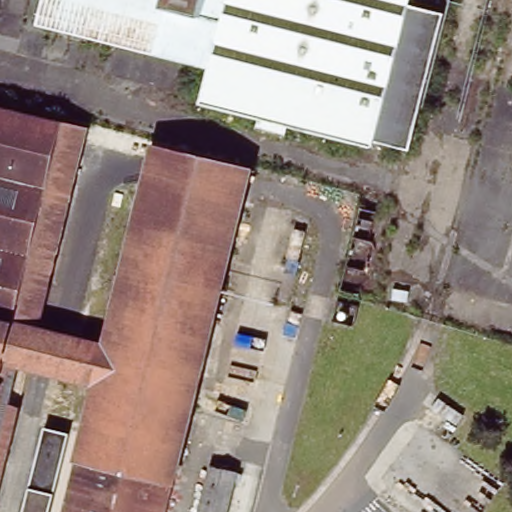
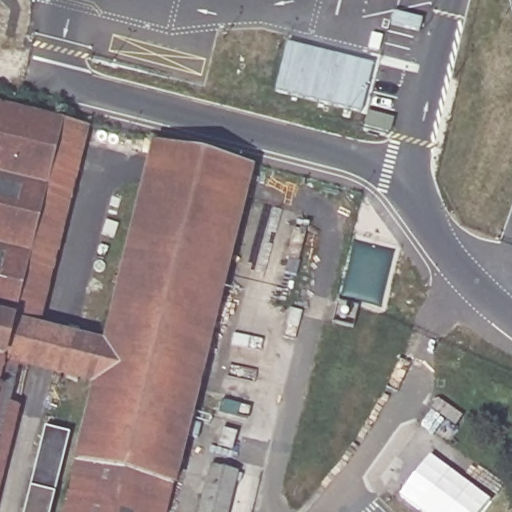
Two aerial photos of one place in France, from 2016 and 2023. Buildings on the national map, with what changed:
demolished [(202,16),(163,6),(165,0),(206,0),(202,16)]
demolished [(405,6),(423,11),(390,147),(374,144),(373,146),(310,131),(310,127),(314,114),(294,110),(290,122),(287,135),(261,129),(264,115),(249,111),(247,115),(200,102),(221,21),(202,16),(206,0),(407,0),(405,6)]
unchanged [(50,325),(100,341),(148,141),(255,167),(171,512),(60,512),(90,388),(34,375),(2,512),(0,512),(0,106),(93,130),(50,325)]
unchanged [(50,512),(24,512),(44,428),(69,434),(50,512)]
unchanged [(216,467),(217,460),(230,462),(227,470),(235,472),(224,512),(196,512),(209,465),(216,467)]

